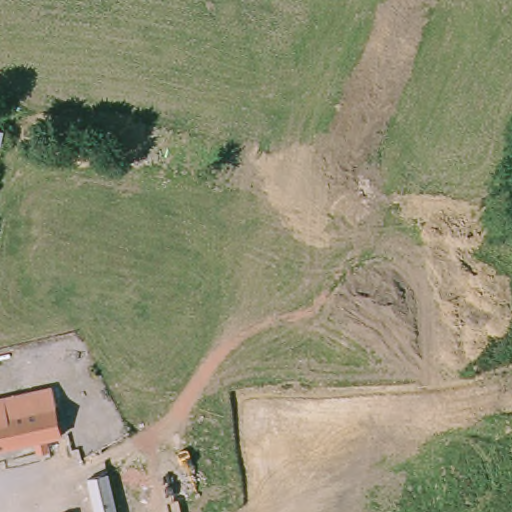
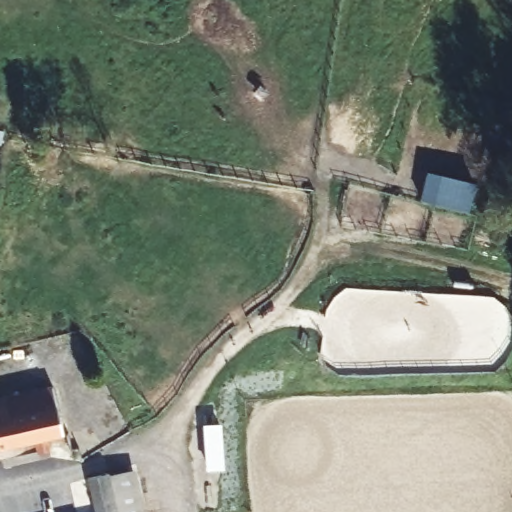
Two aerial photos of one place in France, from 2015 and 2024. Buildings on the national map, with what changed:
new [(422,199),(427,172),(476,182),(471,210),(422,199)]
unchanged [(13,401),(54,391),(56,403),(59,417),(62,436),(0,451),(0,404),(13,401)]
new [(88,479),(136,469),(146,512),(96,512),(88,479)]
demolished [(84,475),(108,470),(118,512),(94,512),(84,475)]

